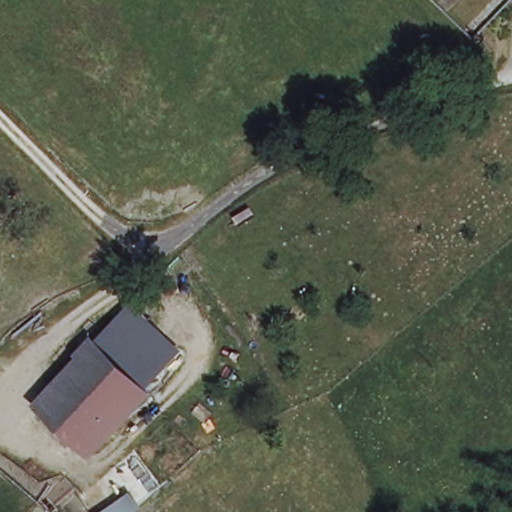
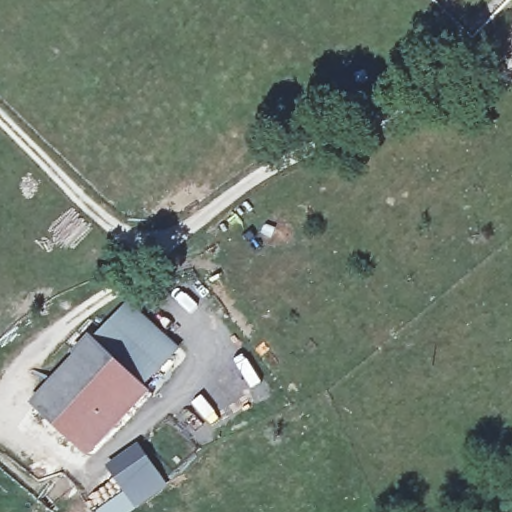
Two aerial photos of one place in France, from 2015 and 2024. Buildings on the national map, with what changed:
unchanged [(130,302),(182,351),(145,395),(129,379),(98,347),(93,342),(130,302)]
unchanged [(93,342),(98,347),(129,379),(145,395),(85,456),(37,406),(82,361),(77,357),(93,342)]
new [(107,467),(138,442),(170,485),(137,509),(134,512),(97,512),(125,492),(107,467)]

